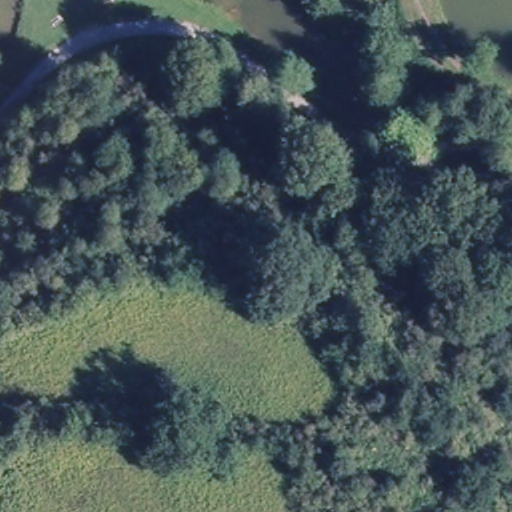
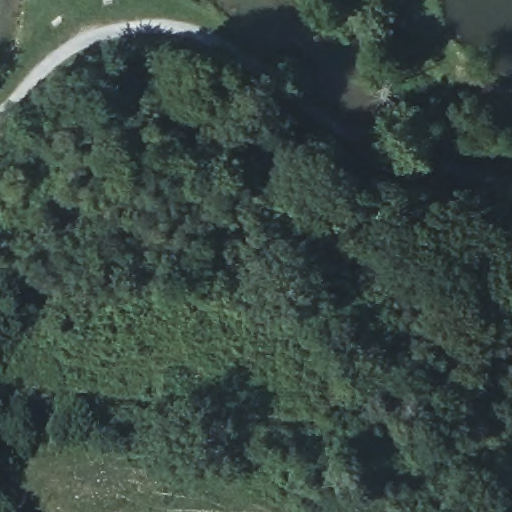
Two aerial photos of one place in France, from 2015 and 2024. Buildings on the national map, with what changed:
[]

